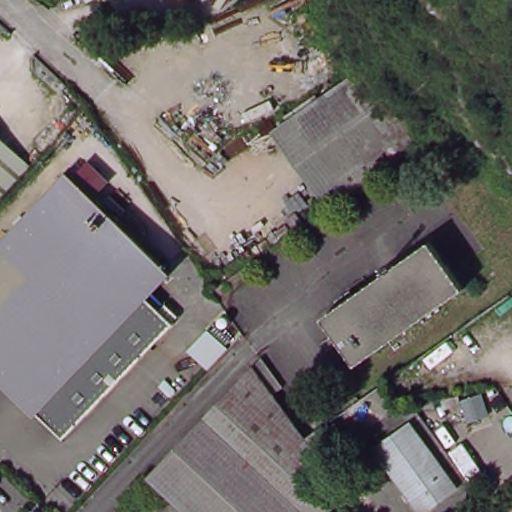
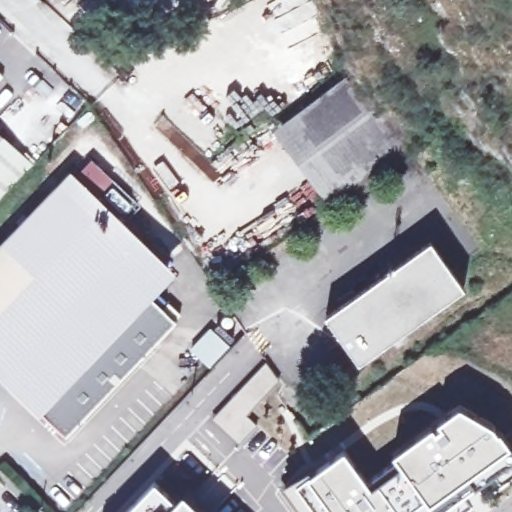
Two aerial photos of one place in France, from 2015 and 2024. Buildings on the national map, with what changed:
unchanged [(331,181),(303,139),(373,91),(400,135),(331,181)]
unchanged [(36,171),(0,210),(0,137),(8,145),(36,171)]
unchanged [(0,263),(77,183),(171,273),(37,413),(0,379),(0,263)]
unchanged [(358,360),(327,312),(428,241),(461,286),(358,360)]
unchanged [(175,325),(65,437),(36,415),(152,300),(175,325)]
demolished [(267,360),(288,390),(291,394),(285,403),(202,427),(267,360)]
new [(265,361),(280,380),(247,414),(258,425),(240,445),(212,418),(265,361)]
demolished [(362,375),(375,365),(380,372),(367,382),(362,375)]
demolished [(324,430),(337,420),(347,435),(322,453),(322,455),(345,487),(322,512),(190,512),(154,476),(202,427),(285,403),(295,417),(308,408),(324,430)]
new [(315,464),(345,443),(368,473),(380,464),(391,457),(387,450),(447,406),(450,410),(460,404),(492,424),(497,431),(500,430),(510,444),(509,445),(512,449),(512,461),(475,487),(440,512),(302,512),(282,485),(302,475),(315,464)]
demolished [(420,505),(382,454),(415,432),(452,483),(420,505)]
new [(175,501),(182,495),(188,488),(213,510),(212,512),(126,512),(155,482),(175,501)]

